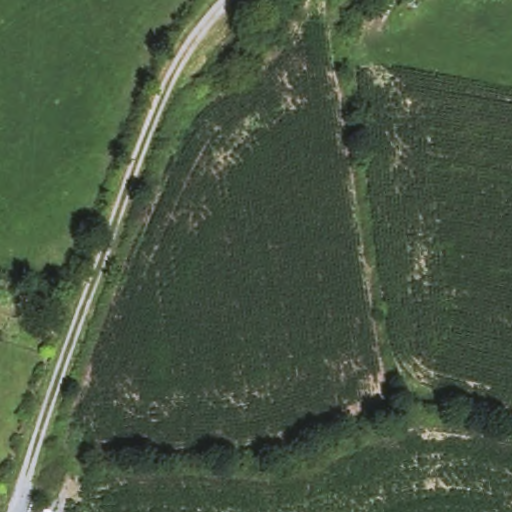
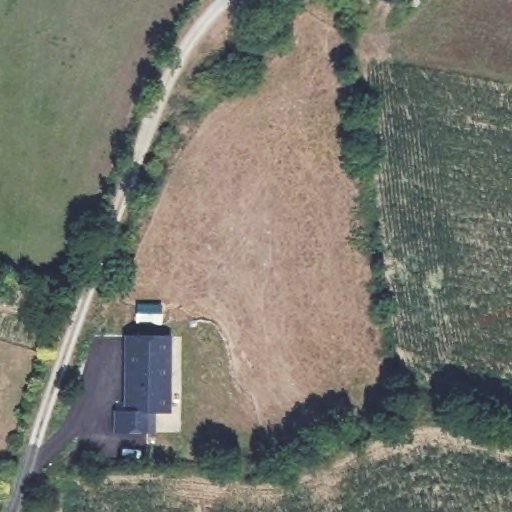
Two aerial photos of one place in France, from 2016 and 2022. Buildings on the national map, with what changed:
new [(173,337),(172,414),(154,414),(155,434),(116,434),(115,412),(124,413),(125,335),(173,337)]

